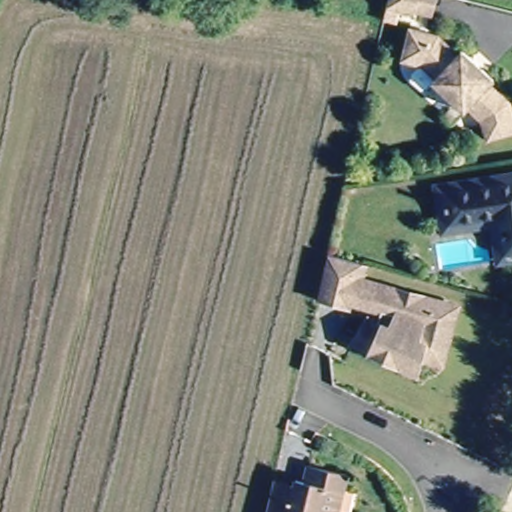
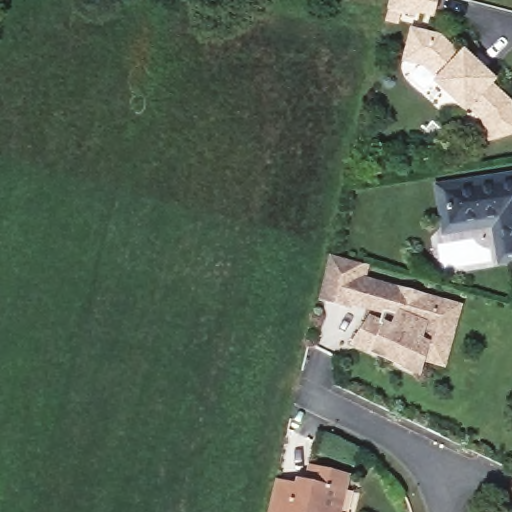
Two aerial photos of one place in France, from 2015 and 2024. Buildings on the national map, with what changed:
unchanged [(413,13),(412,17),(397,12),(394,24),(383,21),(389,0),(436,0),(431,18),(413,13)]
unchanged [(497,80),(493,83),(512,101),(512,134),(489,141),(483,120),(470,107),(466,111),(435,81),(430,87),(425,87),(415,78),(416,71),(421,65),(426,64),(405,59),(409,44),(413,27),(442,34),(462,54),(466,50),(497,80)]
unchanged [(500,260),(495,224),(445,231),(439,182),(512,172),(512,180),(447,189),(452,222),(501,216),(506,254),(512,255),(512,258),(500,260)]
unchanged [(506,254),(501,216),(452,222),(447,189),(512,180),(512,255),(506,254)]
unchanged [(410,301),(435,308),(436,303),(455,308),(448,331),(453,332),(445,357),(425,350),(416,378),(397,368),(400,363),(375,351),(373,355),(355,342),(372,317),(381,322),(385,310),(321,293),(331,256),(365,266),(360,280),(398,292),(393,308),(407,312),(410,301)]
unchanged [(275,489),(276,484),(278,478),(298,483),(300,479),(308,481),(312,466),(350,476),(341,512),(269,512),(275,489)]

